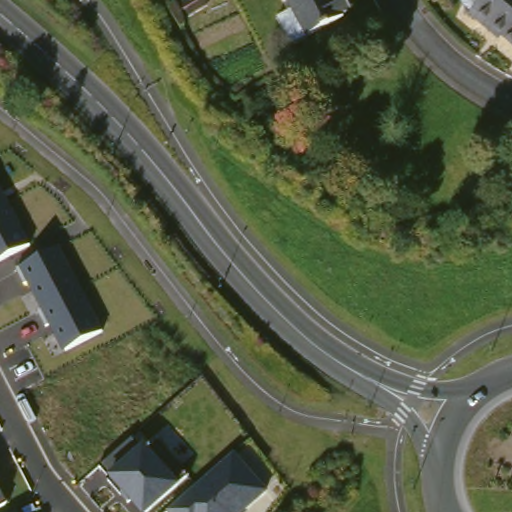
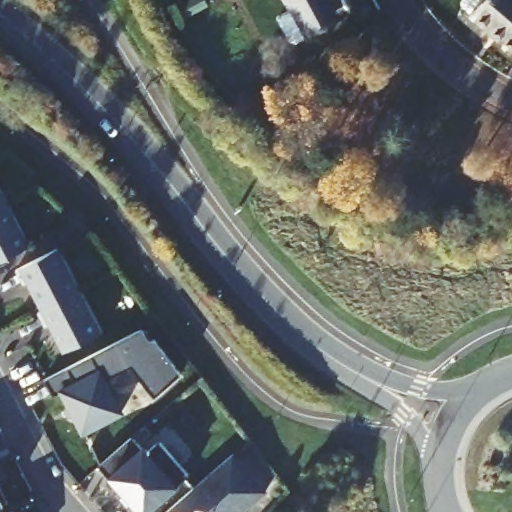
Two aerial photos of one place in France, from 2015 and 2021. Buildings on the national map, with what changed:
unchanged [(194,0),(209,0),(212,5),(189,18),(183,7),(194,0)]
unchanged [(273,20),(297,6),(293,0),(339,0),(347,12),(313,34),(293,49),(273,20)]
unchanged [(512,45),(493,28),(491,30),(471,13),(474,9),(464,0),(512,0),(512,45)]
unchanged [(0,262),(0,188),(30,247),(0,262)]
unchanged [(63,354),(19,266),(59,246),(103,331),(63,354)]
new [(60,394),(54,396),(47,381),(69,369),(143,330),(149,344),(156,341),(182,375),(156,398),(132,368),(108,380),(125,415),(83,436),(60,394)]
unchanged [(138,512),(98,468),(130,440),(140,451),(154,439),(188,474),(146,512),(138,512)]
unchanged [(167,512),(233,454),(269,495),(248,512),(167,512)]
unchanged [(3,507),(0,508),(0,502),(3,507)]

